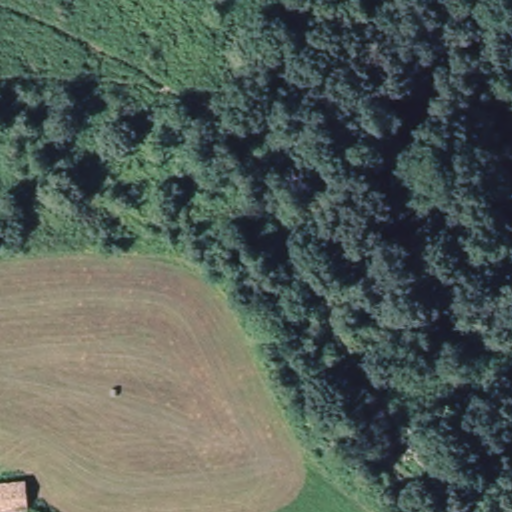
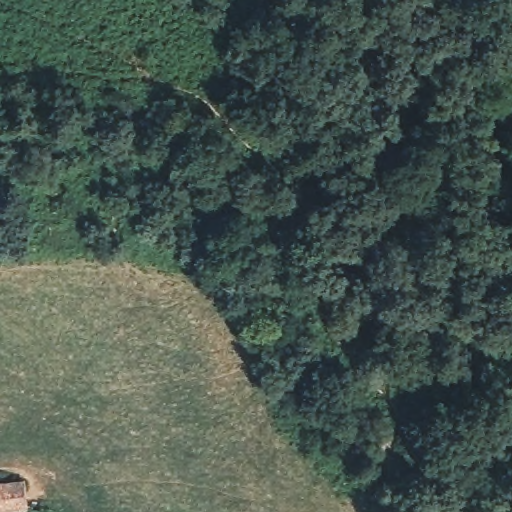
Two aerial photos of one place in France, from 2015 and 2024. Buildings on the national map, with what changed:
unchanged [(29,512),(0,512),(0,487),(27,484),(29,512)]

